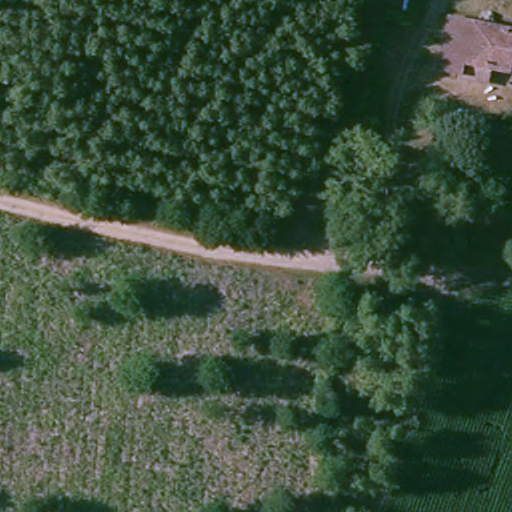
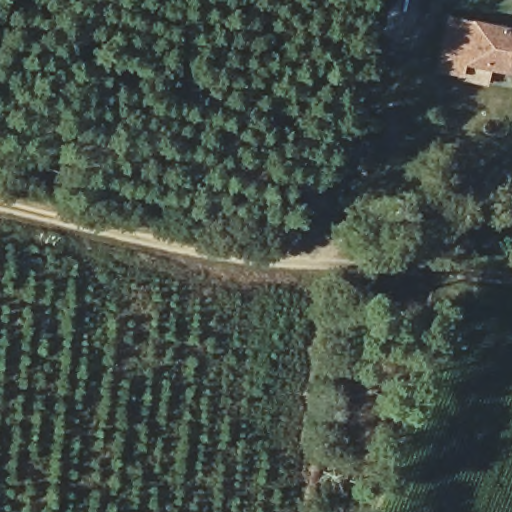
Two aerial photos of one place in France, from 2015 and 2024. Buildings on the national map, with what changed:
unchanged [(448,19),(512,32),(512,47),(508,67),(463,58),(461,71),(440,67),(448,19)]

